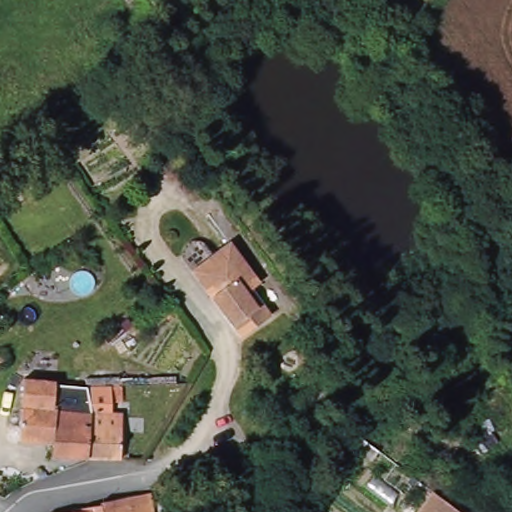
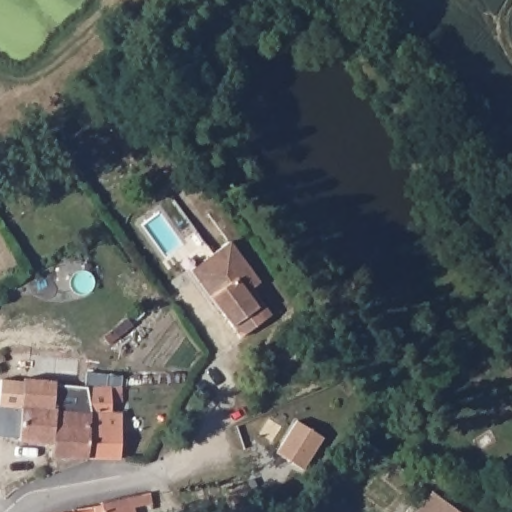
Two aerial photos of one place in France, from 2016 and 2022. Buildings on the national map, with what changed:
unchanged [(250,291),(270,317),(240,340),(219,313),(189,274),(207,260),(211,257),(228,245),(258,285),(250,291)]
unchanged [(53,443),(18,441),(24,379),(55,381),(54,401),(53,443)]
unchanged [(121,459),(104,458),(88,458),(90,411),(86,388),(123,386),(123,403),(112,403),(112,412),(122,412),(121,459)]
unchanged [(88,458),(51,457),(53,443),(54,401),(71,402),(71,410),(90,411),(88,458)]
new [(295,421),(323,437),(303,469),(276,453),(295,421)]
unchanged [(67,512),(74,510),(74,508),(150,494),(152,512),(67,512)]
unchanged [(457,506),(464,512),(435,512),(447,497),(457,506)]

